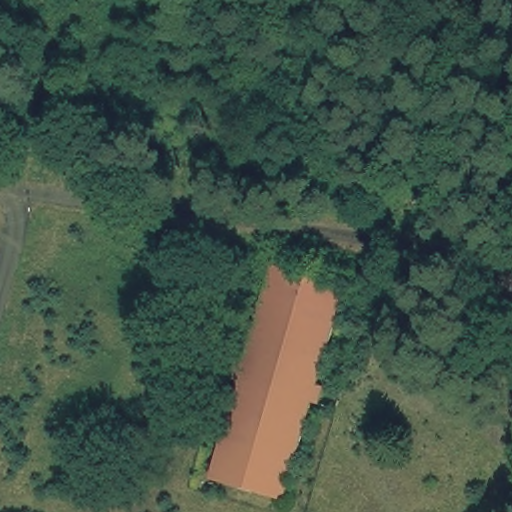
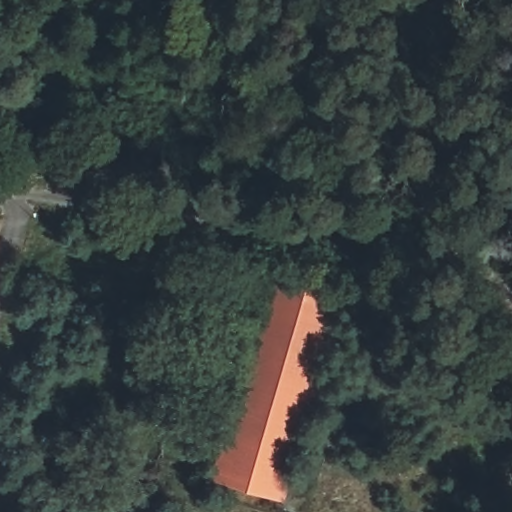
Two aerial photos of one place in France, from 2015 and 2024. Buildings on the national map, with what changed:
unchanged [(0,242),(0,236),(2,236),(0,242)]
unchanged [(275,265),(352,289),(292,503),(217,481),(275,265)]

